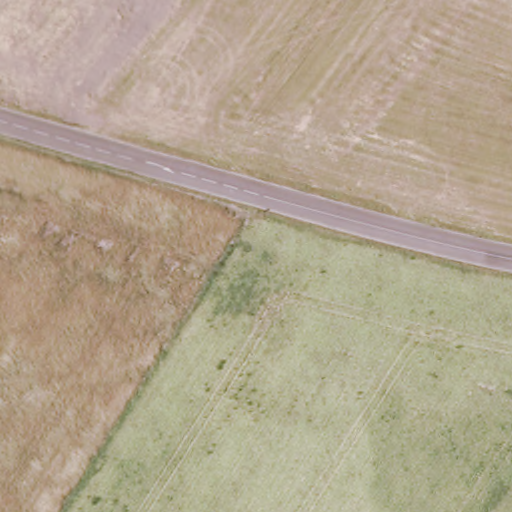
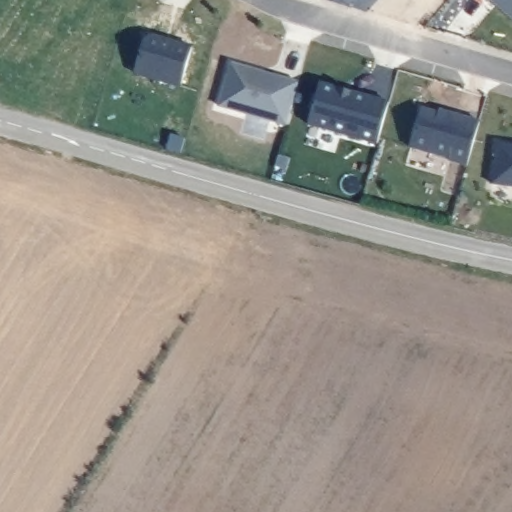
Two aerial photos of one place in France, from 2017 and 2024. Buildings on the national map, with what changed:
new [(483,0),(512,0),(512,24),(483,0)]
new [(135,75),(146,39),(153,36),(192,47),(180,90),(135,75)]
new [(284,129),(217,110),(229,67),(296,87),(284,129)]
new [(375,148),(305,129),(317,87),(387,107),(375,148)]
new [(447,164),(447,162),(407,151),(419,112),(460,124),(461,121),(477,126),(465,169),(447,164)]
new [(491,184),(497,141),(512,143),(512,187),(491,184)]

